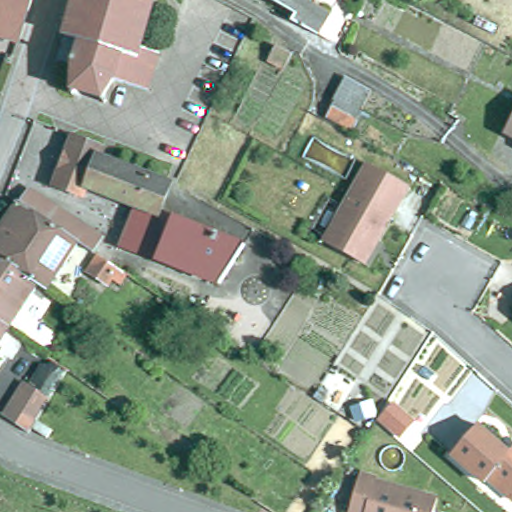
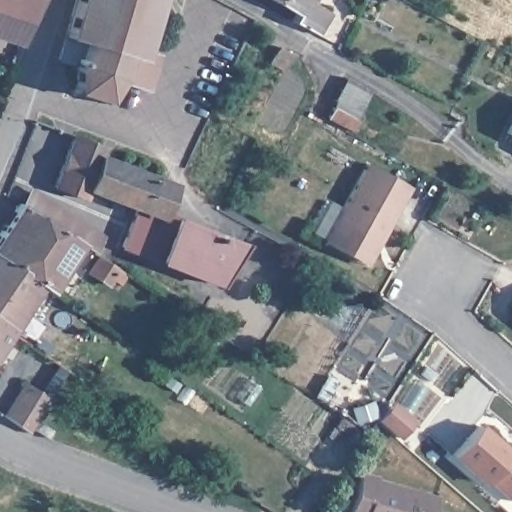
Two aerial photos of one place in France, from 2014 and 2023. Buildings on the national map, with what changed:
unchanged [(19,34),(0,31),(0,0),(31,0),(19,34)]
unchanged [(74,78),(78,75),(80,56),(74,54),(70,49),(64,47),(77,0),(156,0),(145,37),(162,42),(151,80),(118,70),(110,84),(112,90),(107,91),(104,85),(81,79),(78,82),(75,81),(74,78)]
unchanged [(329,11),(316,33),(291,19),(296,11),(277,0),(307,0),(329,11)]
unchanged [(268,61),(275,45),(293,53),(285,70),(268,61)]
unchanged [(369,88),(360,108),(356,123),(352,129),(328,116),(343,76),(369,88)]
unchanged [(220,119),(225,109),(235,113),(230,123),(220,119)]
unchanged [(171,182),(161,211),(246,244),(220,283),(121,245),(136,207),(88,187),(84,197),(53,185),(72,135),(100,145),(96,155),(171,182)]
unchanged [(361,264),(324,243),(368,165),(410,188),(380,242),(366,267),(361,264)]
unchanged [(30,191),(86,227),(101,237),(91,253),(76,243),(47,290),(37,284),(28,277),(0,258),(0,230),(18,202),(21,204),(30,191)]
unchanged [(117,284),(110,278),(106,283),(86,270),(95,256),(107,264),(124,274),(117,284)]
unchanged [(37,284),(10,325),(0,319),(0,258),(28,277),(37,284)]
unchanged [(8,327),(0,339),(0,319),(10,325),(8,327)]
unchanged [(20,384),(45,399),(25,429),(2,413),(20,384)]
unchanged [(480,425),(507,449),(481,479),(454,455),(480,425)]
unchanged [(511,453),(512,452),(512,499),(490,479),(485,483),(481,479),(507,449),(511,453)]
unchanged [(438,498),(434,512),(350,512),(362,472),(377,477),(376,479),(438,498)]

